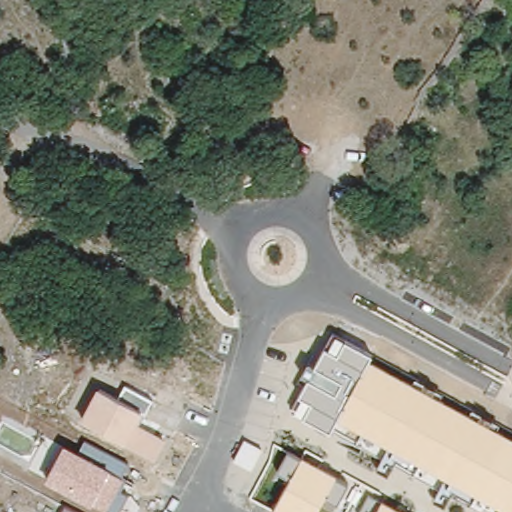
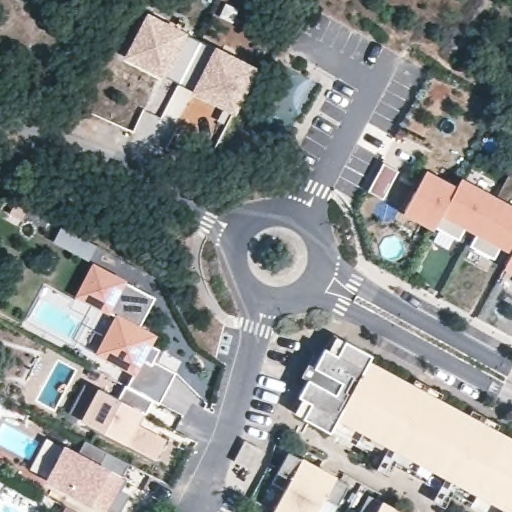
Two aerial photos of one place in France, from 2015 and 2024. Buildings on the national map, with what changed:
new [(261,68),(234,116),(190,92),(192,87),(166,73),(163,78),(123,56),(148,10),(261,68)]
new [(370,196),(385,167),(400,176),(385,204),(370,196)]
new [(425,172),(455,188),(435,227),(404,210),(425,172)]
new [(494,259),(470,246),(477,232),(467,225),(459,240),(435,227),(455,188),(460,180),(495,199),(512,208),(512,250),(501,245),(494,259)]
new [(505,265),(512,251),(512,268),(505,265)]
new [(127,388),(135,373),(97,354),(115,315),(76,296),(94,264),(155,297),(139,325),(158,335),(151,346),(159,350),(153,361),(175,371),(159,403),(152,400),(127,388)]
unchanged [(293,411),(299,397),(308,380),(300,376),(308,362),(315,365),(325,346),(329,349),(335,336),(372,356),(369,361),(512,439),(512,512),(500,512),(502,509),(475,494),(470,503),(452,493),(445,508),(432,502),(444,477),(419,463),(414,471),(397,461),(387,476),(375,470),(388,447),(337,419),(330,432),(304,417),(293,411)]
unchanged [(97,387),(119,398),(125,386),(152,400),(138,424),(166,439),(156,459),(122,441),(80,420),(97,387)]
unchanged [(78,452),(84,442),(128,463),(121,478),(125,479),(121,491),(129,496),(121,512),(109,512),(105,510),(93,504),(44,480),(63,445),(78,452)]
unchanged [(277,474),(288,452),(337,475),(335,479),(348,486),(338,505),(323,497),(315,512),(272,512),(290,480),(277,474)]
unchanged [(382,503),(400,512),(360,512),(368,496),(382,503)]
unchanged [(78,512),(61,512),(64,506),(78,512)]

